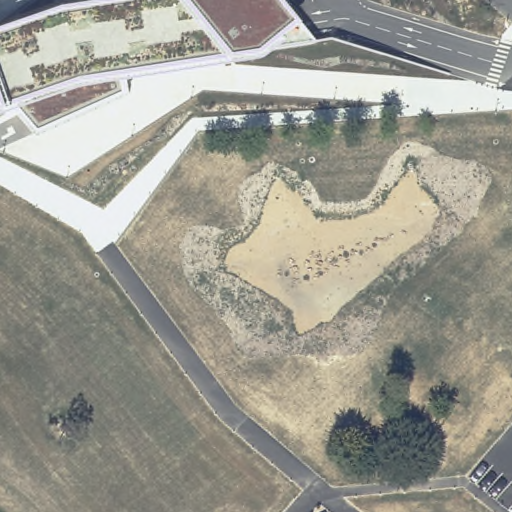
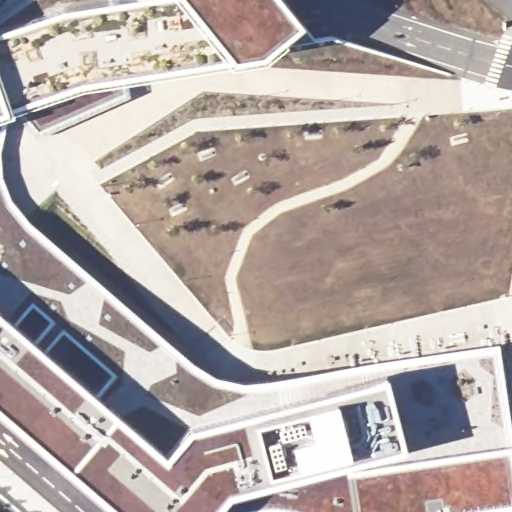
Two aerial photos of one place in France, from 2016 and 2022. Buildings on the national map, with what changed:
unchanged [(0,25),(0,17),(21,0),(87,0),(61,4),(0,25)]
unchanged [(262,56),(227,61),(127,76),(83,82),(10,108),(0,111),(0,25),(61,4),(87,0),(286,0),(302,19),(316,40),(273,47),(262,56)]
unchanged [(129,95),(36,136),(10,108),(83,82),(127,76),(129,95)]
new [(10,108),(0,147),(0,111),(10,108)]
new [(1,176),(8,200),(30,227),(192,365),(228,382),(258,382),(308,375),(373,364),(497,346),(512,446),(512,450),(512,506),(473,512),(292,512),(266,508),(240,512),(208,512),(226,492),(403,448),(386,376),(250,408),(184,425),(163,450),(95,392),(109,371),(62,331),(45,351),(35,343),(52,321),(32,303),(14,326),(0,314),(0,167),(1,176)]
demolished [(150,220),(169,217),(176,224),(179,245),(167,261),(147,263),(144,227),(150,220)]
demolished [(482,256),(512,222),(512,313),(485,290),(482,256)]
demolished [(204,287),(214,275),(240,272),(250,281),(255,276),(250,272),(248,247),(265,227),(292,224),(382,301),(383,327),(366,347),(361,347),(361,360),(375,372),(377,403),(354,432),(327,435),(225,346),(224,334),(186,337),(182,288),(204,287)]
demolished [(5,234),(18,232),(29,241),(30,254),(26,257),(30,261),(37,260),(78,295),(91,294),(101,387),(87,387),(60,365),(52,357),(23,333),(0,335),(0,240),(5,234)]
demolished [(102,267),(147,263),(167,261),(179,245),(187,244),(194,249),(195,258),(181,275),(182,288),(186,337),(162,365),(164,377),(170,382),(172,406),(167,412),(114,412),(107,406),(106,393),(106,392),(101,387),(91,294),(90,282),(102,267)]
new [(14,326),(35,343),(45,351),(95,392),(163,450),(184,425),(386,376),(403,448),(226,492),(208,512),(119,512),(0,411),(0,314),(14,326)]
demolished [(27,366),(32,361),(42,370),(50,377),(60,385),(45,405),(47,429),(73,452),(100,420),(114,419),(114,412),(167,412),(216,408),(312,490),(313,495),(314,512),(211,512),(177,483),(127,487),(107,512),(58,512),(0,463),(0,368),(27,366)]

